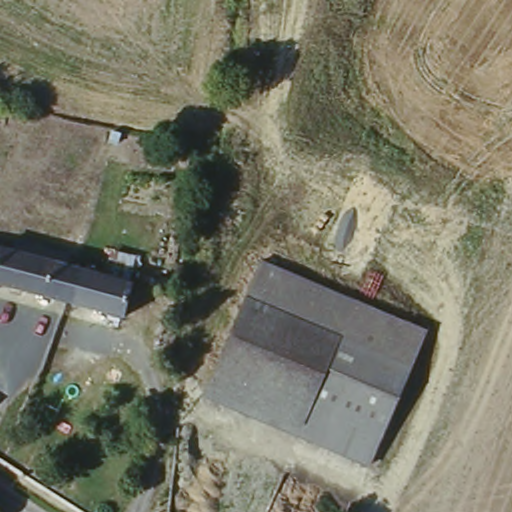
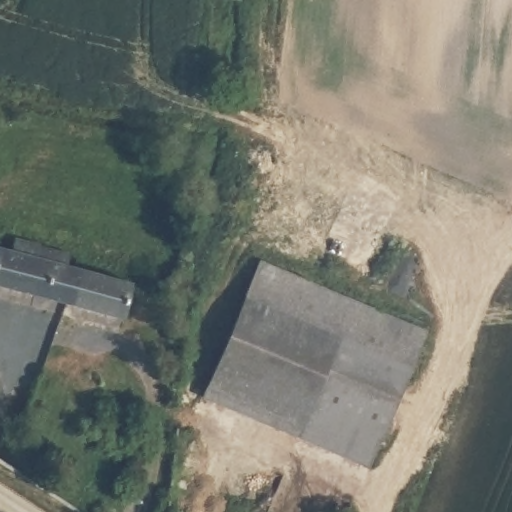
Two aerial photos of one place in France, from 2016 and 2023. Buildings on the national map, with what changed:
unchanged [(10,252),(15,240),(70,255),(67,267),(130,285),(121,318),(0,283),(0,249),(10,252)]
unchanged [(425,322),(367,457),(202,388),(261,254),(425,322)]

